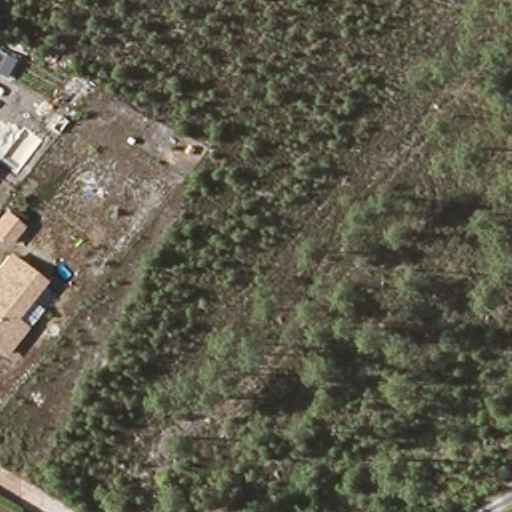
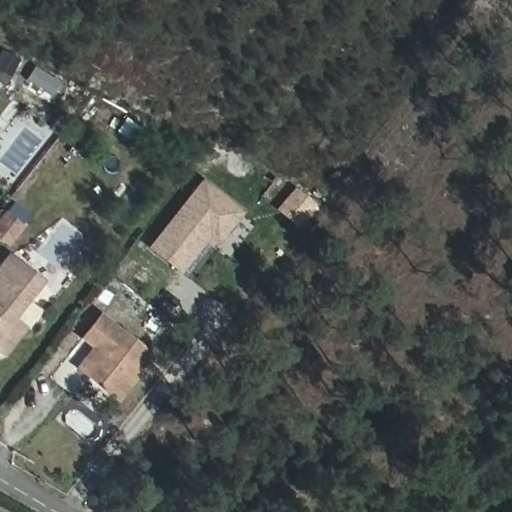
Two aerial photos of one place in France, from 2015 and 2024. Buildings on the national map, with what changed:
new [(227,258),(204,239),(177,271),(150,249),(203,182),(254,225),(227,258)]
unchanged [(15,317),(28,327),(3,356),(0,354),(0,262),(8,252),(44,280),(15,317)]
new [(128,332),(156,355),(118,402),(74,368),(91,347),(79,338),(99,313),(120,330),(128,332)]

